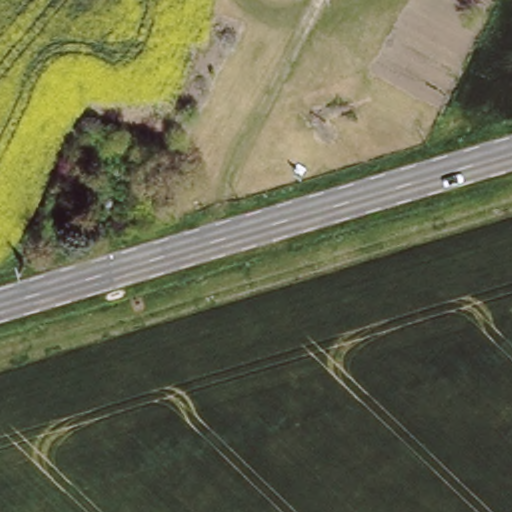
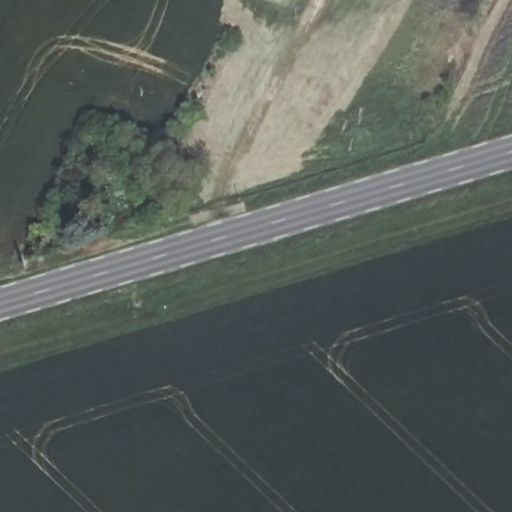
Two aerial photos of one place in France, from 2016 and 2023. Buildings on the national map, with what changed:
unchanged [(147,206),(119,192),(133,173),(159,188),(147,206)]

